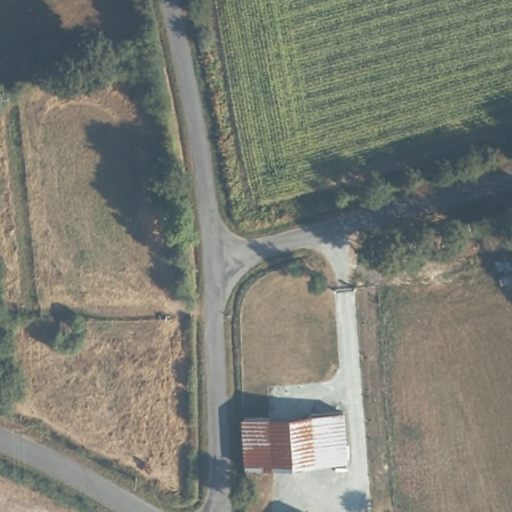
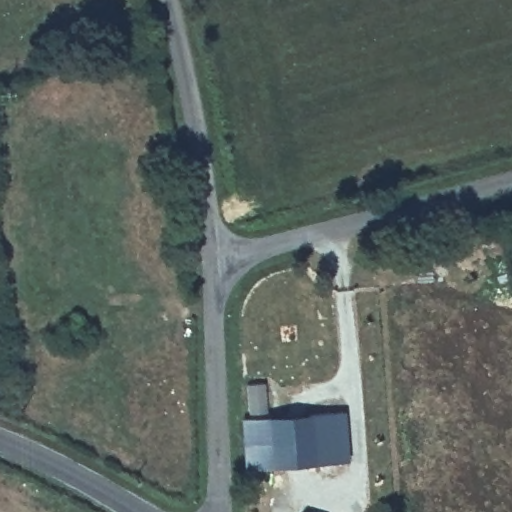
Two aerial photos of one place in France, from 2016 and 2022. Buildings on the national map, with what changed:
unchanged [(336,408),(339,465),(244,464),(242,412),(336,408)]
unchanged [(313,512),(311,512),(312,511),(313,512)]

